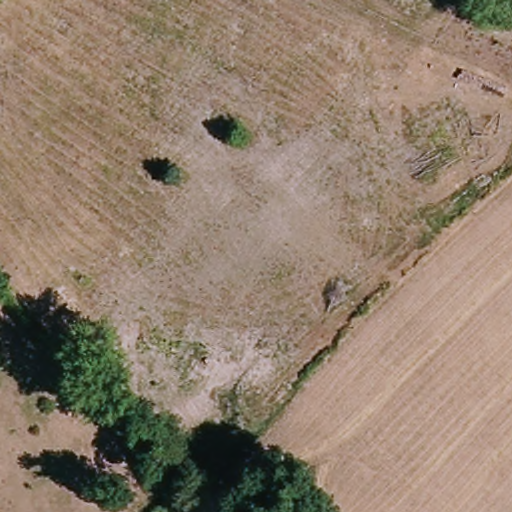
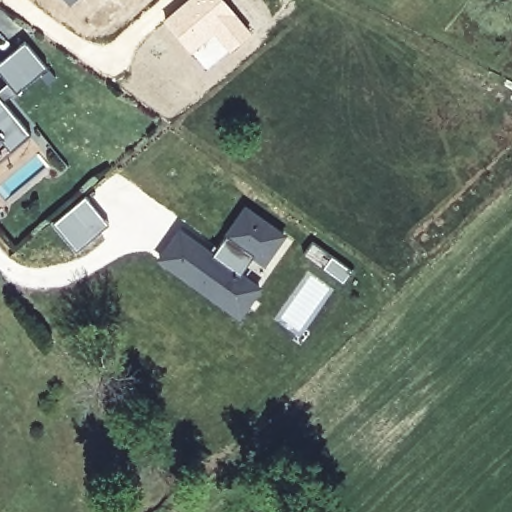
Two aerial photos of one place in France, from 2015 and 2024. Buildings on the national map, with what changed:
new [(69,5),(65,0),(74,0),(69,5)]
new [(184,0),(225,0),(252,33),(206,70),(163,18),(184,0)]
new [(24,44),(46,71),(15,96),(0,77),(0,63),(24,44)]
new [(32,136),(0,162),(0,96),(32,136)]
new [(85,196),(110,225),(76,252),(53,223),(85,196)]
new [(212,256),(245,211),(283,237),(291,244),(258,290),(239,318),(159,261),(179,233),(212,256)]

